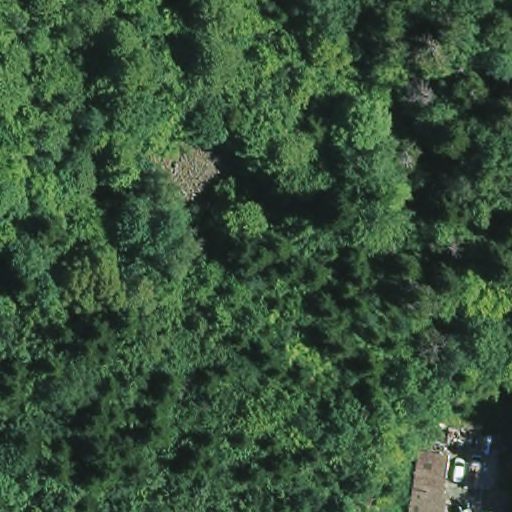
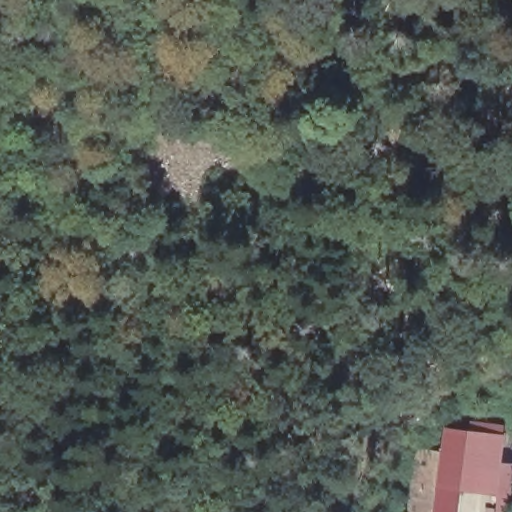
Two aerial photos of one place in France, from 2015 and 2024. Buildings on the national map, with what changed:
new [(440,494),(444,454),(447,430),(467,432),(469,422),(512,427),(512,507),(512,512),(496,512),(497,495),(462,492),(460,512),(440,512),(442,495),(440,494)]
unchanged [(440,494),(442,495),(440,512),(408,512),(414,451),(444,454),(440,494)]

